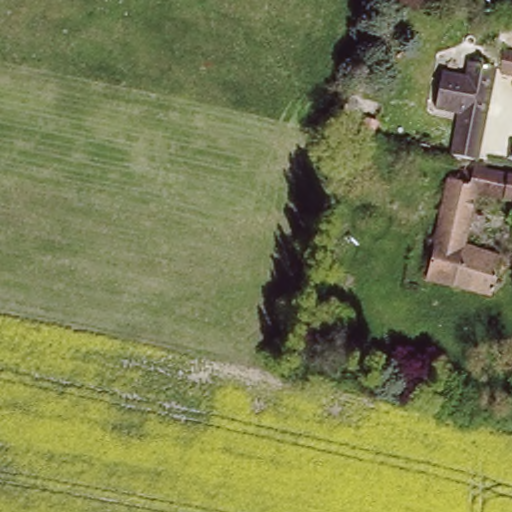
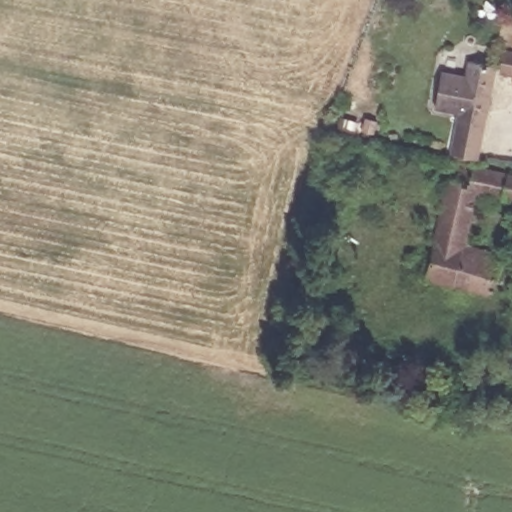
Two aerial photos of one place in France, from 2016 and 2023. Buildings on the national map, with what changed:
unchanged [(500,74),(503,48),(512,50),(512,75),(500,74)]
unchanged [(478,158),(450,152),(461,107),(438,101),(444,67),(463,74),(465,62),(493,66),(478,158)]
unchanged [(500,257),(494,280),(425,261),(446,180),(466,185),(472,160),(512,171),(512,199),(473,190),(459,246),(500,257)]
unchanged [(494,280),(489,298),(420,280),(425,261),(494,280)]

